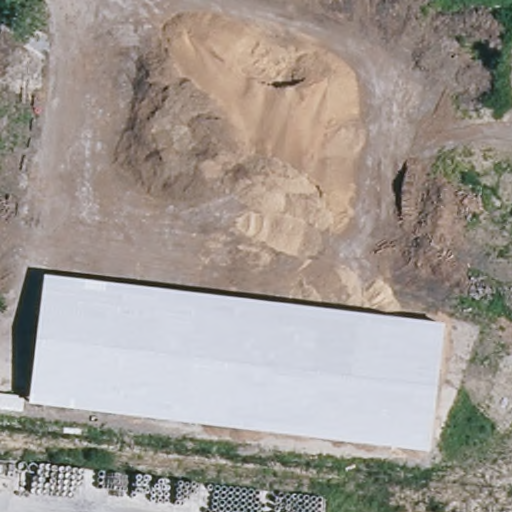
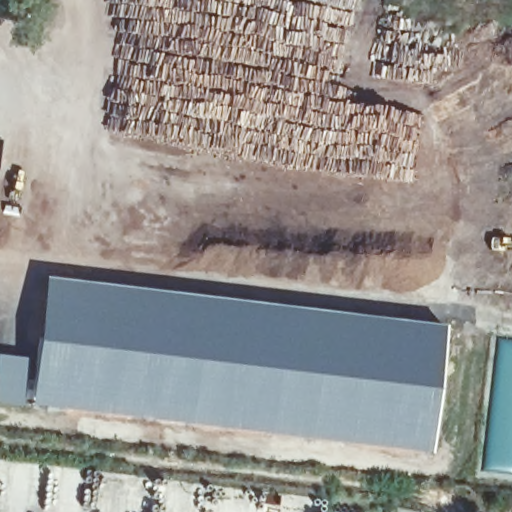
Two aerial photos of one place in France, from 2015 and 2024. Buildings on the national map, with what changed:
unchanged [(30,406),(45,278),(445,325),(429,453),(30,406)]
new [(0,402),(0,355),(27,358),(21,405),(0,402)]

